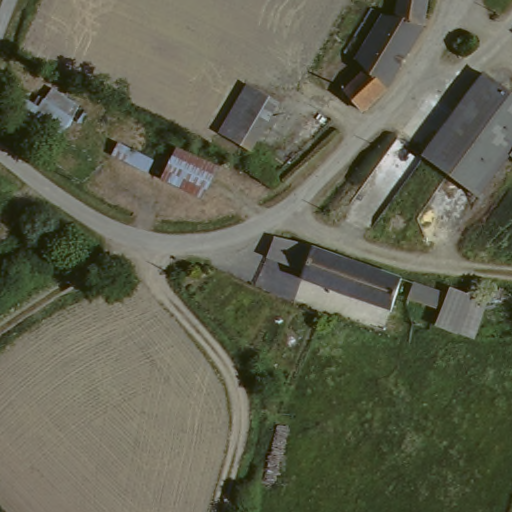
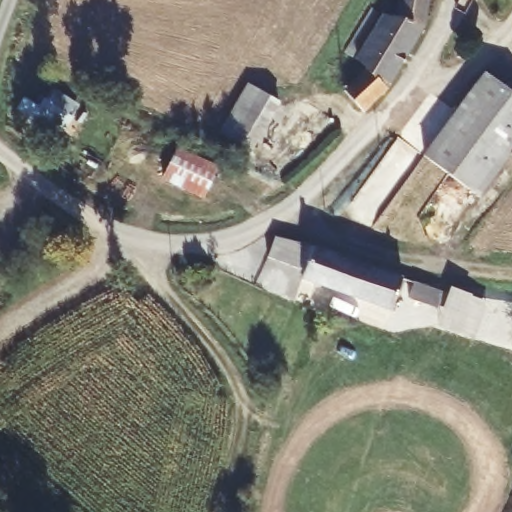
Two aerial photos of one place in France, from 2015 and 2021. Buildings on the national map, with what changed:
unchanged [(389,17),(392,0),(423,0),(419,24),(389,17)]
unchanged [(377,14),(389,17),(419,24),(387,69),(350,106),(329,88),(352,58),(349,55),(377,14)]
unchanged [(426,155),(482,76),(512,99),(512,152),(479,195),(426,155)]
unchanged [(246,91),(275,108),(249,154),(221,137),(246,91)]
unchanged [(32,96),(67,99),(67,133),(30,130),(32,96)]
unchanged [(175,150),(216,170),(202,199),(161,179),(175,150)]
unchanged [(302,286),(296,284),(259,272),(267,245),(311,259),(302,286)]
unchanged [(302,286),(311,259),(405,287),(396,315),(380,309),(302,286)]
unchanged [(451,298),(451,304),(446,304),(442,314),(415,304),(421,288),(451,298)]
unchanged [(470,323),(453,317),(461,294),(477,299),(470,323)]

